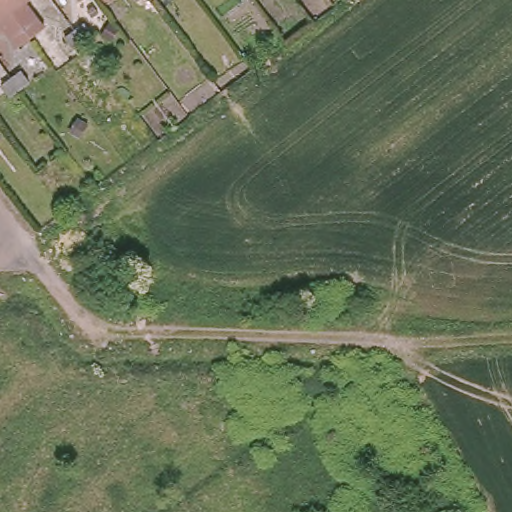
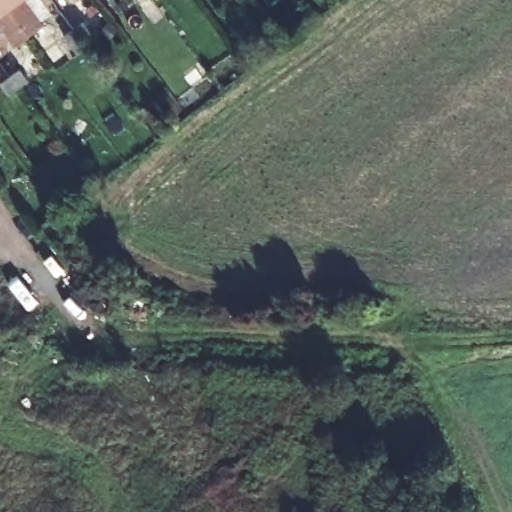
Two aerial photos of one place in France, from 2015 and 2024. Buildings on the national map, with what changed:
unchanged [(0,28),(0,0),(4,0),(29,32),(12,44),(0,28)]
unchanged [(43,22),(29,32),(4,0),(27,0),(43,22)]
unchanged [(129,0),(140,0),(133,6),(129,0)]
unchanged [(63,41),(73,34),(82,27),(90,38),(81,45),(71,52),(63,41)]
unchanged [(0,87),(9,81),(19,74),(27,85),(17,92),(7,100),(0,91),(0,87)]

